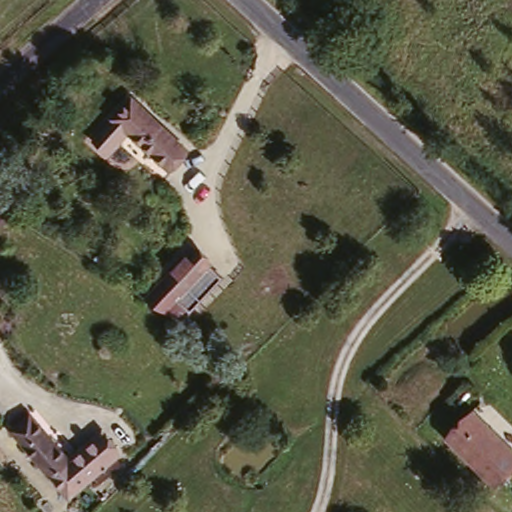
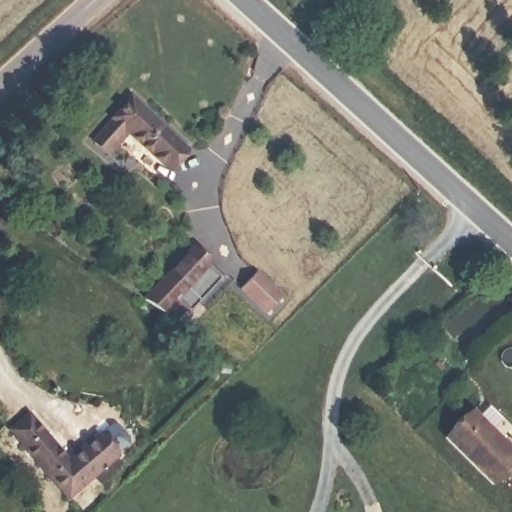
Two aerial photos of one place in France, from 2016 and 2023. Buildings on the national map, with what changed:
unchanged [(133,97),(193,150),(173,172),(134,137),(112,159),(93,140),(133,97)]
unchanged [(137,301),(190,245),(211,266),(207,269),(221,283),(196,310),(188,317),(185,314),(174,325),(137,301)]
new [(256,271),(282,297),(265,317),(239,291),(256,271)]
unchanged [(512,447),(512,467),(497,485),(442,440),(466,410),(512,447)]
unchanged [(70,461),(49,475),(10,430),(31,415),(70,461)]
unchanged [(100,436),(117,460),(66,498),(49,475),(70,461),(100,436)]

